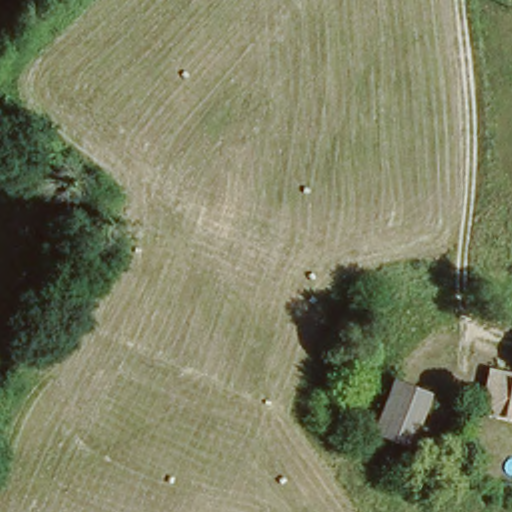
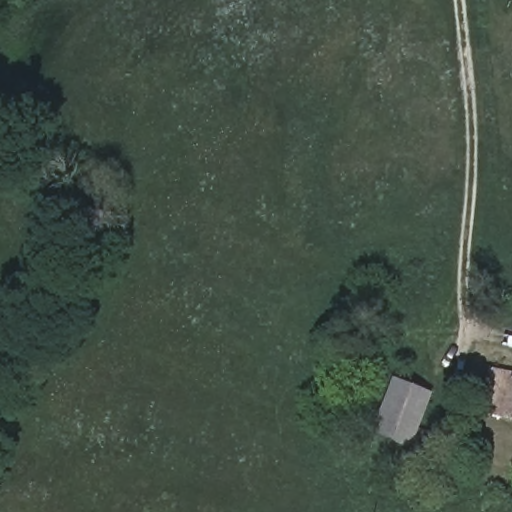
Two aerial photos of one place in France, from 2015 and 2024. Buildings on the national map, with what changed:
unchanged [(429,392),(409,445),(369,432),(391,375),(429,392)]
unchanged [(497,421),(506,377),(512,378),(512,424),(497,421)]

